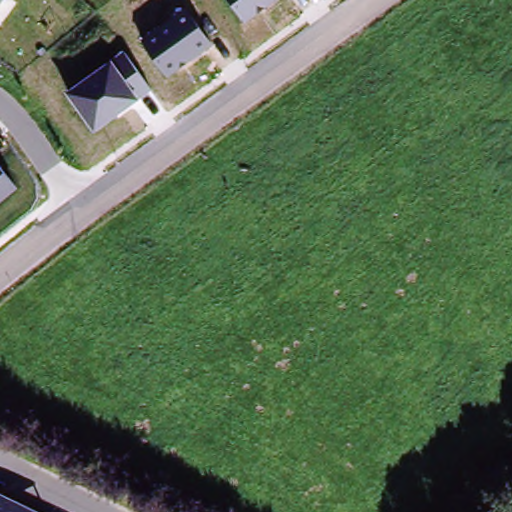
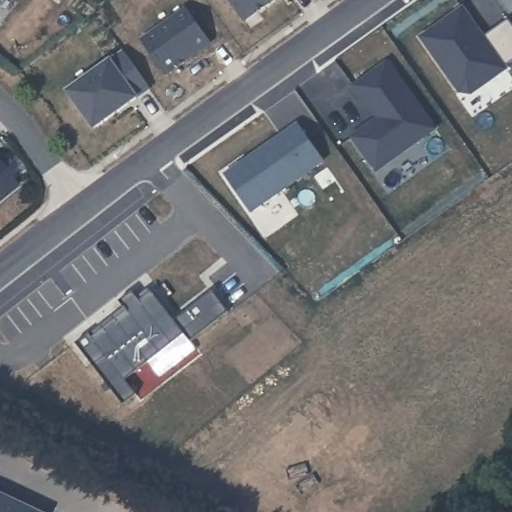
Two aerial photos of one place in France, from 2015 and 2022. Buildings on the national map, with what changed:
unchanged [(0,3),(0,0),(2,0),(0,3)]
unchanged [(244,22),(229,0),(275,0),(244,22)]
unchanged [(185,9),(212,44),(168,75),(141,39),(185,9)]
new [(482,38),(507,20),(512,28),(512,63),(470,96),(462,91),(431,50),(424,40),(463,10),(482,38)]
unchanged [(110,59),(124,50),(151,89),(139,97),(93,130),(67,90),(110,59)]
new [(376,170),(351,136),(369,124),(371,126),(378,120),(353,86),(385,62),(434,129),(376,170)]
new [(369,124),(376,118),(378,120),(371,126),(369,124)]
new [(294,127),(317,162),(250,213),(226,177),(294,127)]
unchanged [(17,188),(0,201),(0,166),(17,188)]
new [(139,396),(126,406),(77,347),(90,336),(94,341),(127,315),(119,305),(132,294),(140,304),(151,295),(174,323),(211,293),(228,313),(191,343),(184,336),(127,382),(139,396)]

